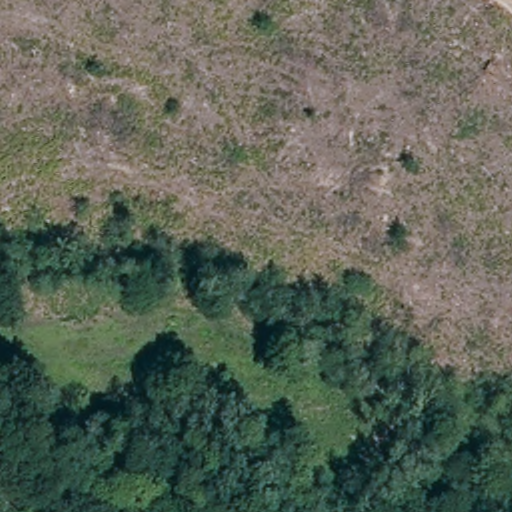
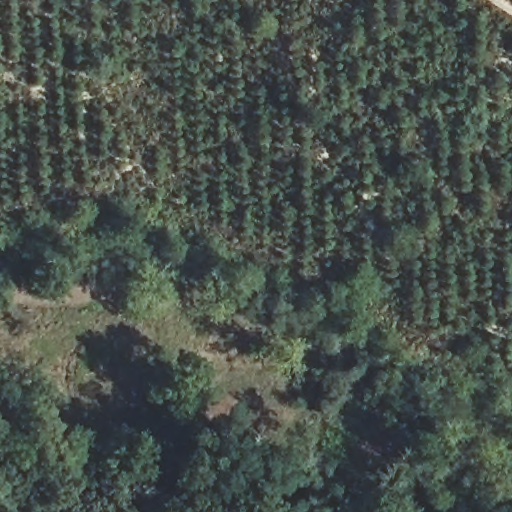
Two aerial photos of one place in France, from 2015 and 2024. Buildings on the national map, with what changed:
[]

